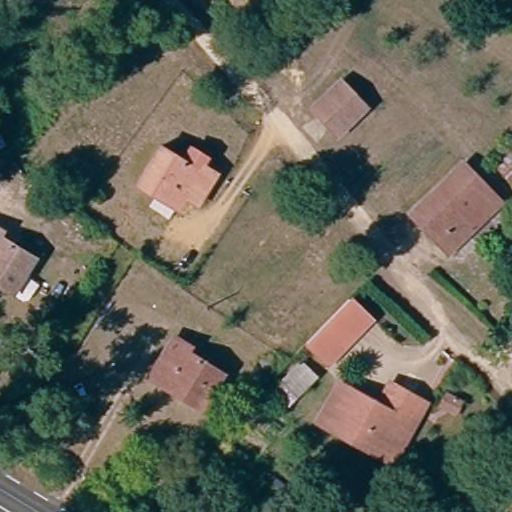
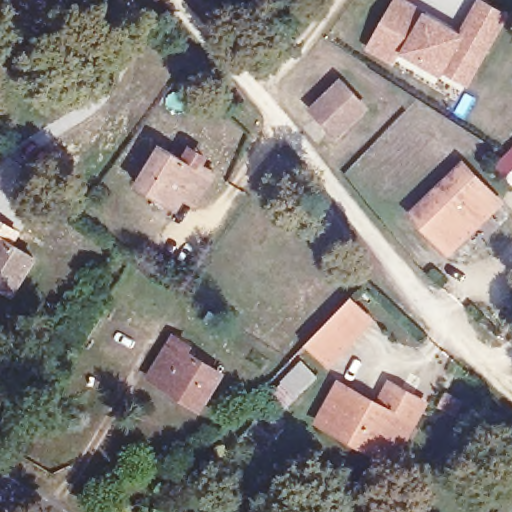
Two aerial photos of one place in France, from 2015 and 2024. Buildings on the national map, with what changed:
new [(459,31),(477,0),(484,0),(510,15),(468,86),(444,72),(442,76),(401,52),(392,67),(364,50),(394,0),(406,0),(424,11),(459,31)]
unchanged [(365,101),(346,133),(316,114),(334,82),(365,101)]
unchanged [(207,156),(211,148),(228,158),(204,194),(190,186),(182,197),(141,172),(166,132),(207,156)]
new [(510,184),(494,165),(512,148),(512,183),(510,184)]
unchanged [(496,196),(460,255),(413,224),(447,168),(496,196)]
unchanged [(9,297),(0,290),(0,244),(29,263),(9,297)]
unchanged [(352,301),(372,323),(324,367),(304,344),(352,301)]
unchanged [(187,343),(186,351),(222,373),(199,407),(151,377),(175,337),(187,343)]
unchanged [(380,405),(391,385),(424,401),(412,423),(402,418),(382,452),(354,437),(350,445),(317,427),(340,386),(380,405)]

